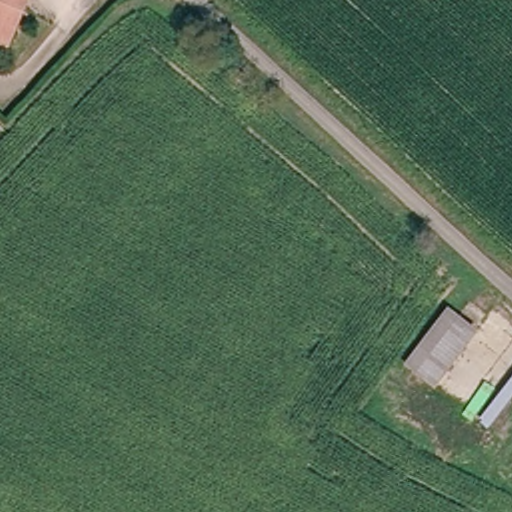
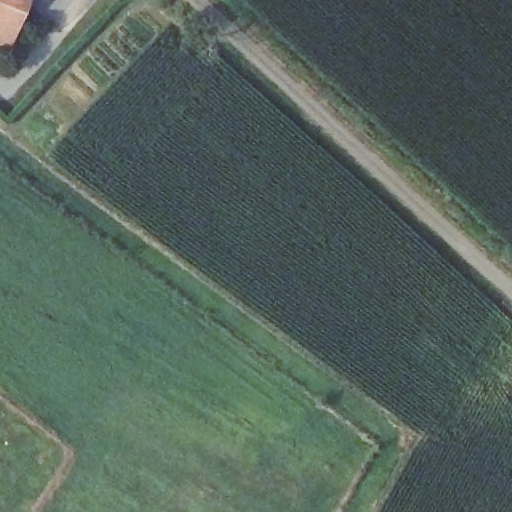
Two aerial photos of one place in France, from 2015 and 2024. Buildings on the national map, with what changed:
unchanged [(0,0),(10,0),(0,28),(0,0)]
unchanged [(0,39),(0,28),(10,0),(27,0),(11,43),(0,39)]
demolished [(483,331),(451,370),(463,378),(458,387),(445,377),(436,387),(405,366),(450,306),(483,331)]

